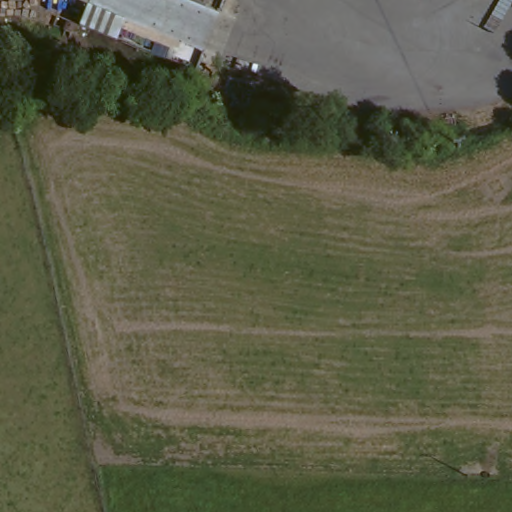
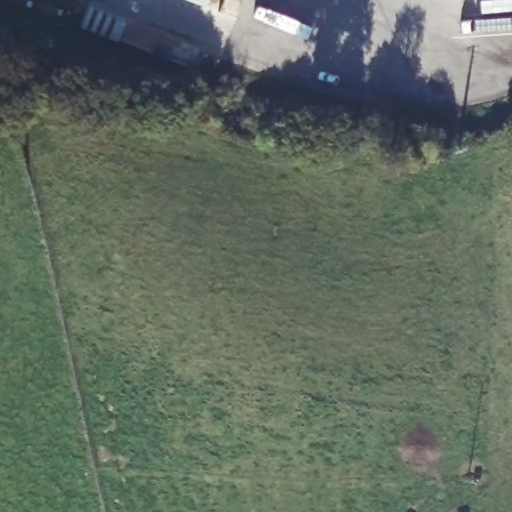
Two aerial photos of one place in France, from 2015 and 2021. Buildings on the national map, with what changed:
unchanged [(176,0),(229,0),(222,16),(176,0)]
unchanged [(82,30),(90,11),(207,54),(202,67),(200,73),(185,69),(82,30)]

